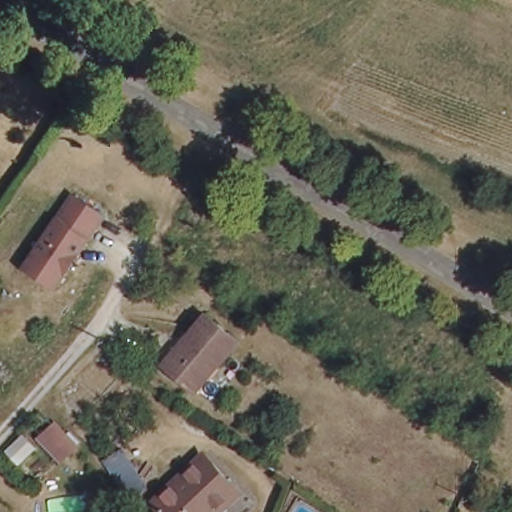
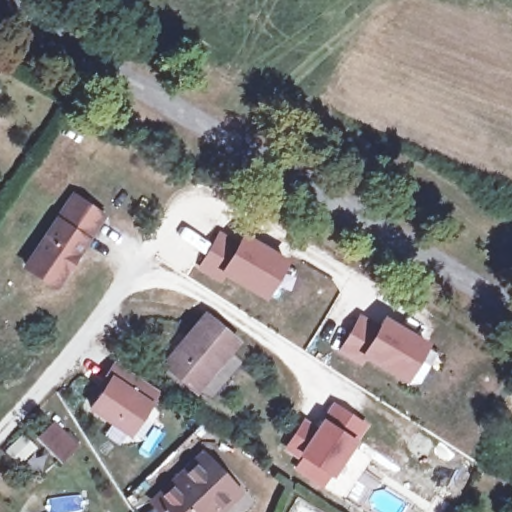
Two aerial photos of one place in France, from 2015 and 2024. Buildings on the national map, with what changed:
unchanged [(101,214),(52,283),(23,263),(72,194),(101,214)]
new [(220,230),(239,239),(243,231),(288,259),(264,299),(225,276),(220,282),(199,269),(220,230)]
new [(340,353),(360,314),(378,324),(384,315),(430,342),(407,382),(363,356),(361,366),(340,353)]
unchanged [(196,392),(168,369),(210,318),(242,346),(216,378),(201,396),(196,392)]
new [(100,388),(107,377),(117,362),(158,390),(129,434),(92,408),(103,391),(100,388)]
new [(302,422),(316,431),(333,405),(363,425),(330,474),(301,455),(300,457),(285,448),(302,422)]
unchanged [(73,446),(61,458),(40,436),(52,425),(73,446)]
unchanged [(205,512),(156,512),(147,502),(199,455),(231,488),(205,512)]

